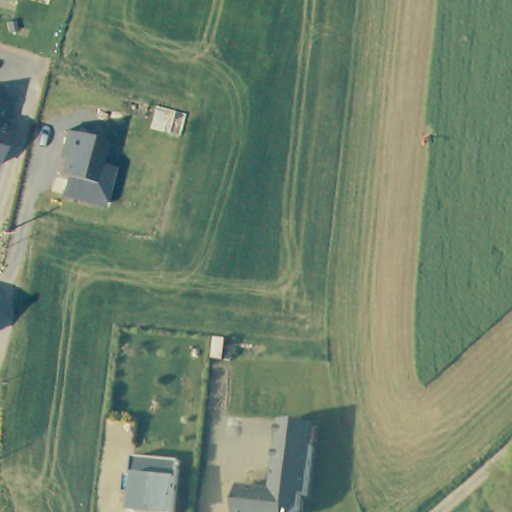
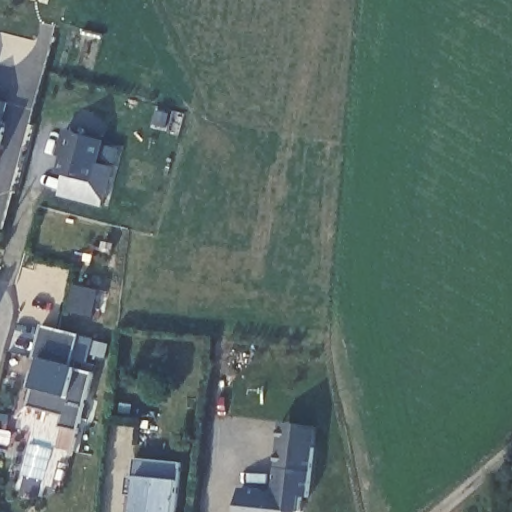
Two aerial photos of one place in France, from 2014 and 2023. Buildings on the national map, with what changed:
unchanged [(0,117),(0,100),(4,101),(0,117)]
unchanged [(0,160),(0,122),(8,123),(0,160)]
unchanged [(106,141),(100,164),(114,167),(103,207),(61,198),(66,175),(56,172),(66,131),(106,141)]
new [(81,336),(71,366),(94,372),(79,431),(60,427),(63,416),(28,407),(33,388),(41,358),(33,357),(41,325),(81,336)]
unchanged [(312,427),(305,500),(299,499),(297,512),(235,512),(239,489),(271,493),(284,425),(312,427)]
unchanged [(182,462),(174,512),(132,512),(135,495),(125,493),(128,473),(133,474),(136,455),(182,462)]

